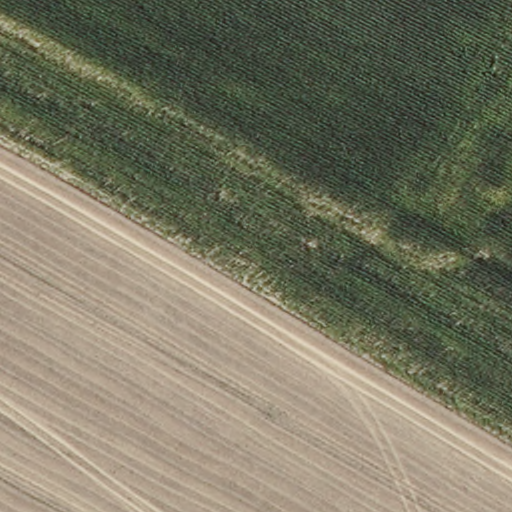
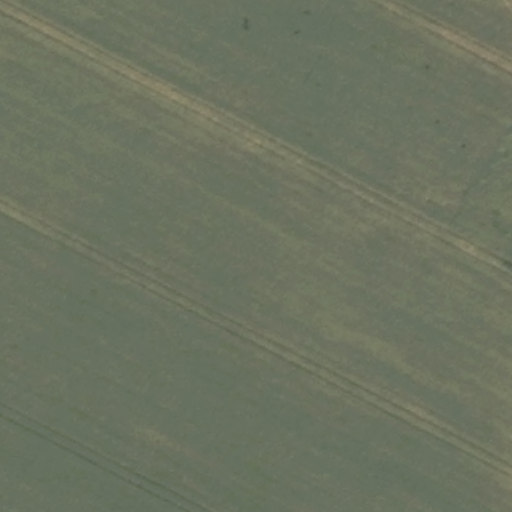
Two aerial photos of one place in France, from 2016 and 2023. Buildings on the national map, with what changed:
[]

